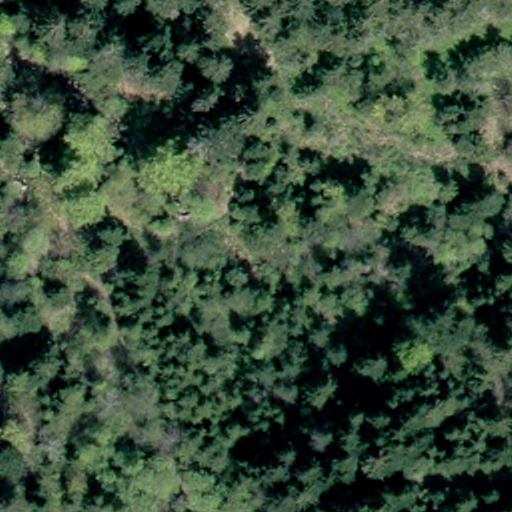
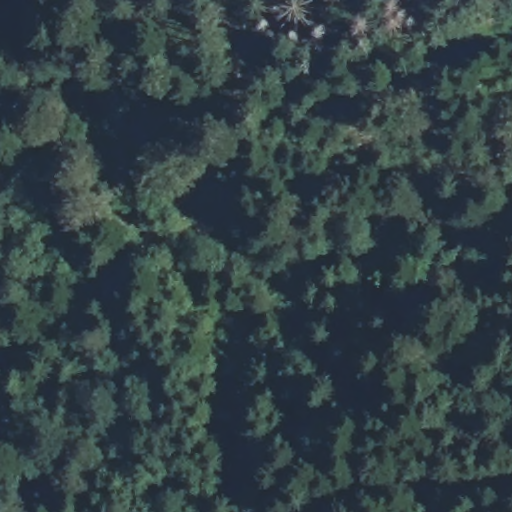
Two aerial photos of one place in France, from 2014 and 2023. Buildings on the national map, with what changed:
[]

